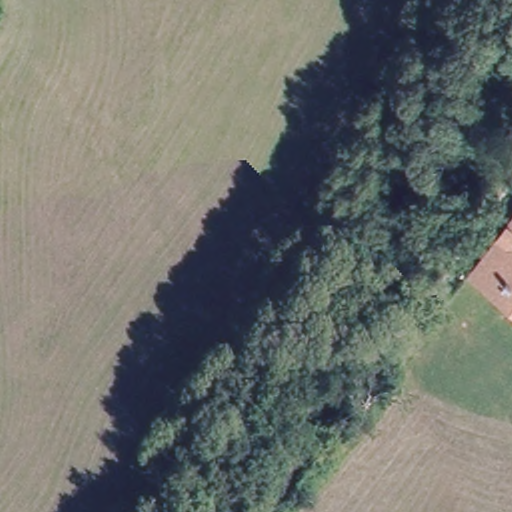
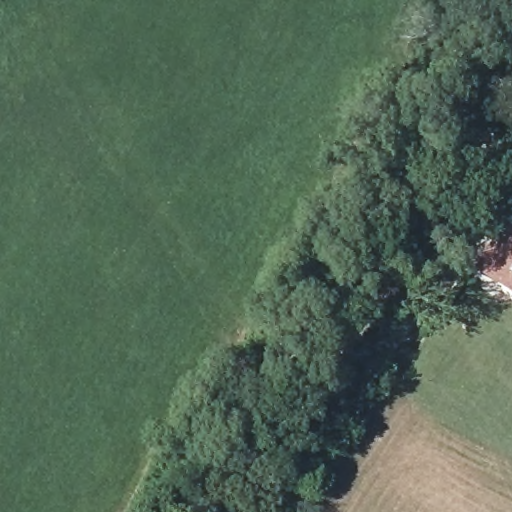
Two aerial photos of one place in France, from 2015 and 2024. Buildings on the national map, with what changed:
unchanged [(512,224),(512,308),(470,276),(512,224)]

